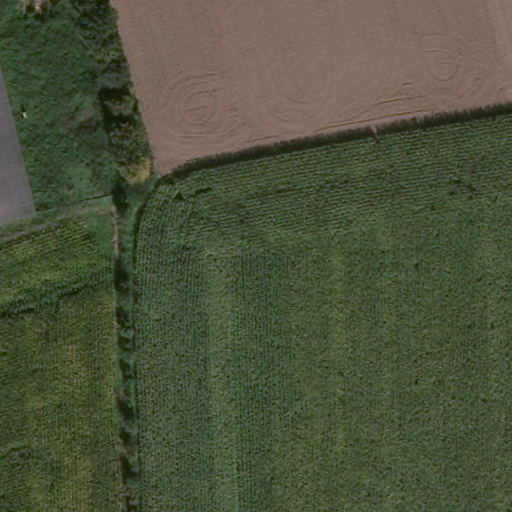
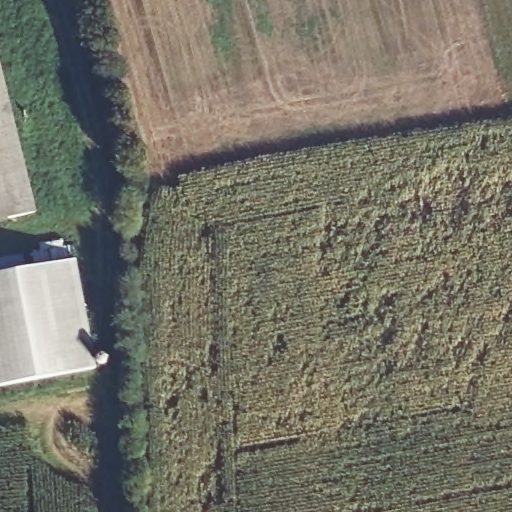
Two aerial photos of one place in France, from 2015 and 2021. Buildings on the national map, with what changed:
unchanged [(32,216),(0,224),(0,80),(32,216)]
new [(21,254),(24,268),(75,258),(95,369),(0,386),(0,258),(21,254)]

